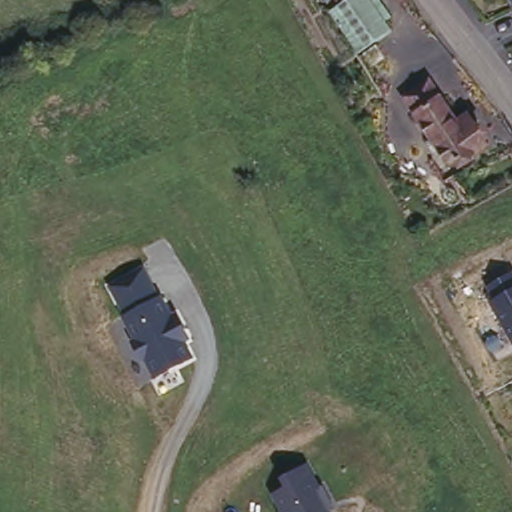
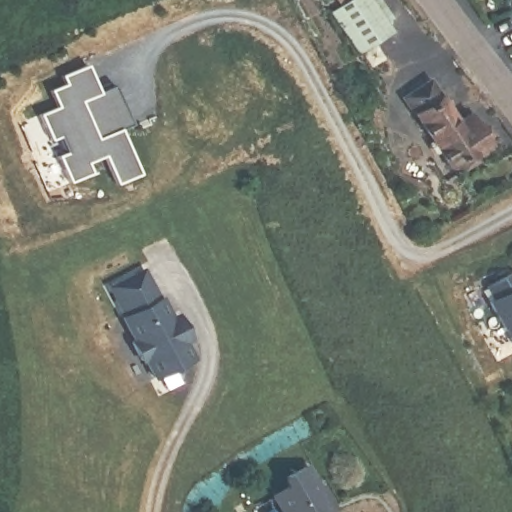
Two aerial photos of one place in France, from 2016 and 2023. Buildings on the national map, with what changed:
unchanged [(348,0),(371,0),(391,32),(357,54),(331,11),(348,0)]
new [(62,155),(69,152),(62,134),(52,139),(44,114),(61,108),(52,87),(67,81),(65,73),(89,62),(101,90),(116,83),(132,120),(124,124),(142,171),(117,183),(104,151),(90,160),(96,172),(72,180),(62,155)]
unchanged [(402,96),(431,80),(441,97),(457,123),(468,116),(486,146),(445,170),(412,114),(413,114),(402,96)]
unchanged [(155,380),(146,360),(142,360),(131,341),(134,340),(121,316),(123,315),(108,287),(144,268),(158,297),(162,294),(171,313),(177,309),(194,341),(188,345),(195,360),(155,380)]
unchanged [(493,301),(486,287),(512,273),(512,343),(488,302),(493,301)]
unchanged [(270,494),(282,488),(278,480),(308,464),(321,490),(325,487),(336,510),(332,512),(280,512),(270,494)]

